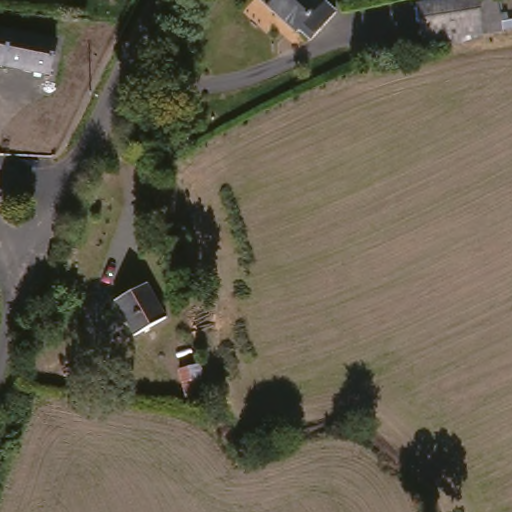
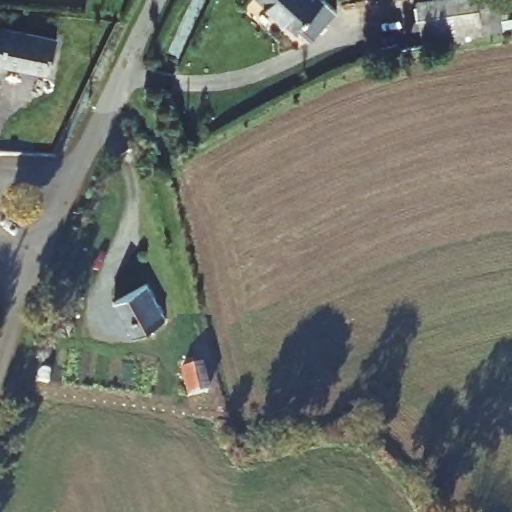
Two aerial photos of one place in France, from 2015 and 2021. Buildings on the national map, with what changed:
unchanged [(298,29),(295,31),(261,0),(323,0),(336,11),(310,40),(298,29)]
unchanged [(473,36),(433,41),(426,0),(508,0),(512,25),(497,28),(473,36)]
unchanged [(0,23),(57,35),(50,70),(0,60),(0,23)]
unchanged [(135,334),(116,301),(147,283),(166,318),(135,334)]
unchanged [(187,395),(180,369),(200,365),(206,391),(187,395)]

